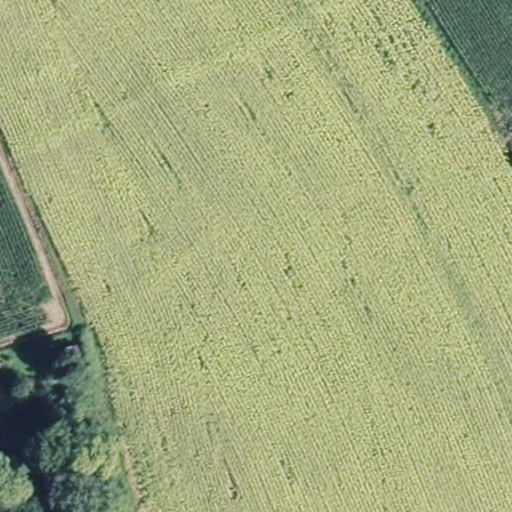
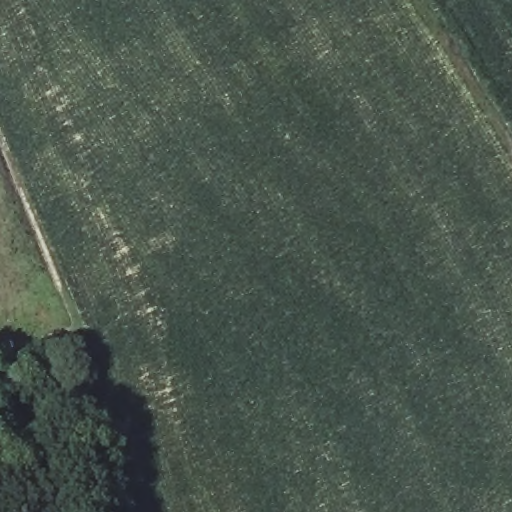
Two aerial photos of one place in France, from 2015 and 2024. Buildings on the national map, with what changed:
[]

